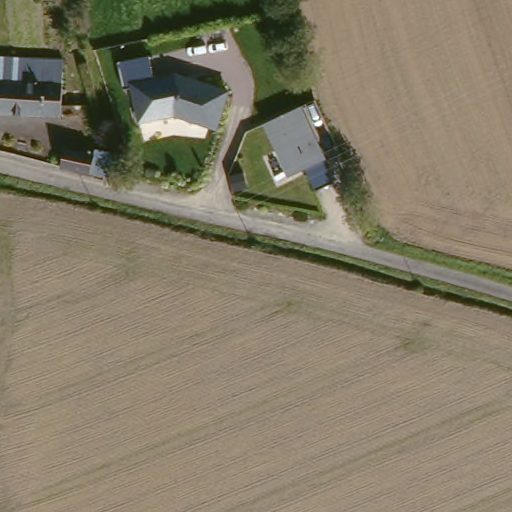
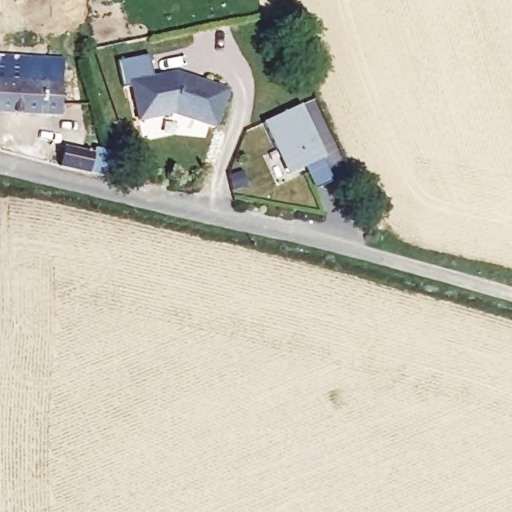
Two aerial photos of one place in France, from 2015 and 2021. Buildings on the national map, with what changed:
unchanged [(147,55),(153,75),(176,71),(231,88),(217,128),(172,116),(135,122),(127,85),(122,86),(117,62),(147,55)]
unchanged [(65,60),(61,116),(0,113),(0,57),(65,60)]
unchanged [(299,105),(332,182),(312,191),(302,169),(285,176),(261,123),(299,105)]
unchanged [(65,149),(125,150),(125,172),(95,171),(95,176),(64,170),(65,149)]

